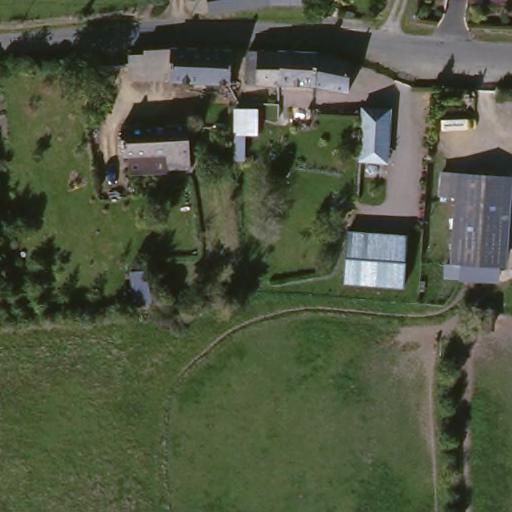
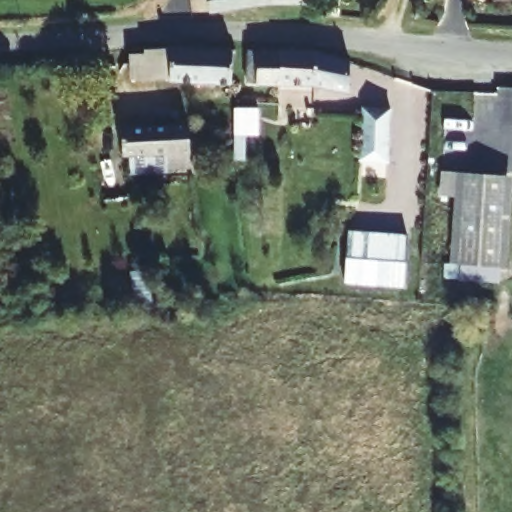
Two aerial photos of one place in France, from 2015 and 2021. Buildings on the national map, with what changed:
unchanged [(272,5),(211,17),(209,0),(302,0),(301,9),(272,5)]
unchanged [(226,85),(200,84),(168,83),(167,75),(142,77),(142,74),(126,74),(125,55),(171,50),(202,52),(228,53),(226,85)]
unchanged [(276,88),(255,87),(255,54),(276,54),(312,56),(311,89),(276,88)]
unchanged [(315,56),(347,65),(346,94),(311,89),(312,56),(315,56)]
unchanged [(260,132),(238,133),(237,120),(236,108),(260,108),(260,132)]
unchanged [(391,170),(355,168),(360,108),(392,110),(391,170)]
unchanged [(195,172),(179,173),(178,161),(140,163),(125,164),(122,136),(190,131),(195,172)]
unchanged [(450,280),(460,178),(506,184),(502,284),(450,280)]
unchanged [(405,291),(342,286),(347,232),(408,236),(405,291)]

